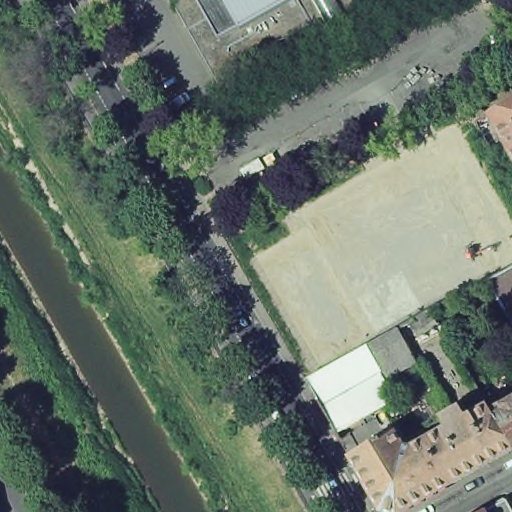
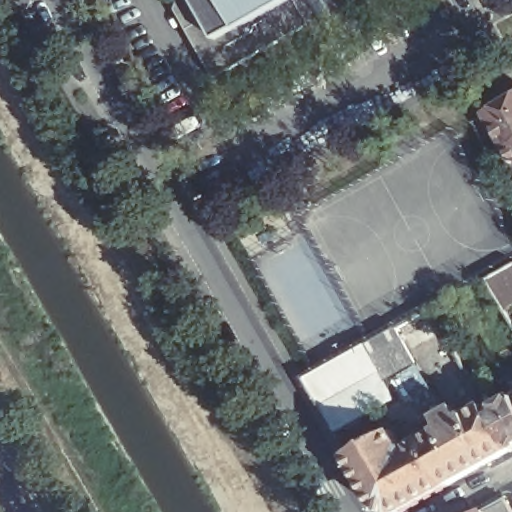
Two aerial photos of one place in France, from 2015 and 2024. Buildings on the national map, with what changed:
unchanged [(356,0),(360,6),(355,9),(352,5),(320,24),(322,28),(317,30),(313,22),(308,21),(292,30),(290,34),(286,34),(269,43),(268,47),(263,46),(247,55),(245,59),(241,59),(216,73),(189,25),(177,4),(179,0),(356,0)]
unchanged [(482,119),(512,101),(512,148),(502,154),(482,119)]
unchanged [(502,154),(512,148),(512,172),(502,154)]
unchanged [(510,269),(512,267),(512,272),(510,269)]
unchanged [(512,272),(512,334),(510,336),(480,285),(510,269),(512,272)]
unchanged [(425,315),(428,322),(405,334),(402,327),(424,314),(425,315)]
unchanged [(390,333),(409,367),(377,384),(359,351),(390,333)]
unchanged [(455,414),(447,418),(407,351),(435,334),(477,402),(455,414)]
unchanged [(359,351),(377,384),(390,406),(330,439),(299,384),(321,372),(359,351)]
unchanged [(512,396),(512,403),(512,402),(509,398),(512,396)]
unchanged [(481,408),(487,404),(492,414),(512,402),(512,403),(512,452),(507,454),(481,411),(482,411),(481,408)]
unchanged [(440,434),(435,425),(447,418),(455,414),(460,423),(481,411),(507,454),(443,490),(418,446),(440,434)]
unchanged [(387,437),(397,453),(405,454),(418,446),(443,490),(404,512),(372,512),(343,461),(387,437)]
unchanged [(500,505),(503,512),(487,512),(500,505)]

